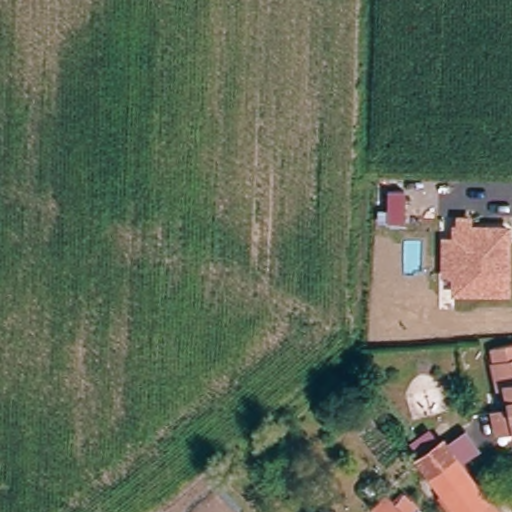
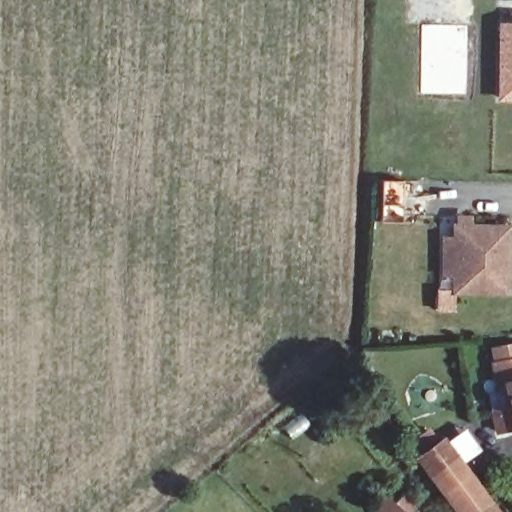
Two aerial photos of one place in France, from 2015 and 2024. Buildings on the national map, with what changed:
new [(465,25),(463,93),(417,92),(418,24),(465,25)]
new [(496,103),(497,24),(512,24),(512,103),(496,103)]
unchanged [(455,229),(507,231),(507,296),(455,294),(455,229)]
unchanged [(512,437),(495,440),(487,413),(501,410),(487,351),(512,344),(512,436),(512,437)]
unchanged [(499,512),(455,512),(438,493),(417,471),(439,450),(462,474),(471,483),(486,498),(499,512)]
unchanged [(398,484),(422,511),(421,512),(376,512),(373,509),(398,484)]

